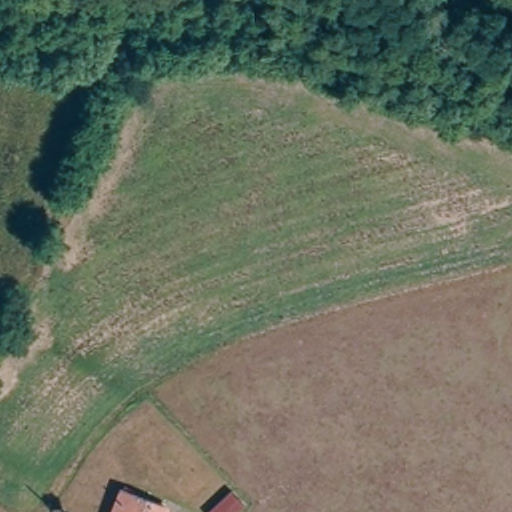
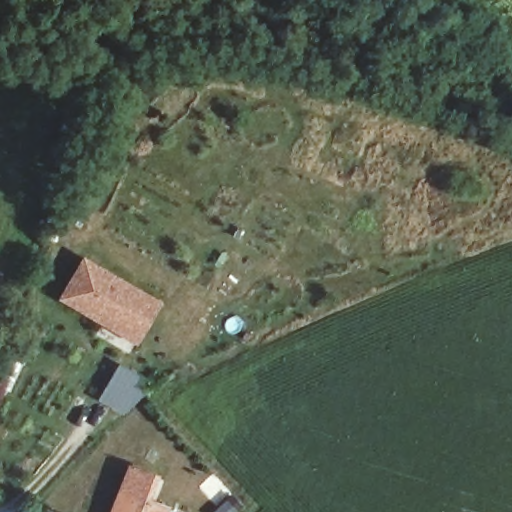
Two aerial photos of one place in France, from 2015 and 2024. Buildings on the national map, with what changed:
new [(140,338),(126,330),(65,295),(86,258),(147,293),(161,301),(140,338)]
new [(121,363),(137,372),(131,384),(144,391),(127,408),(102,395),(121,363)]
unchanged [(159,512),(122,512),(130,494),(161,508),(159,512)]

